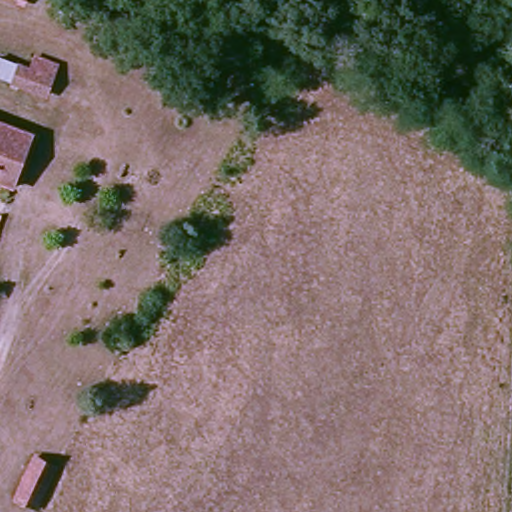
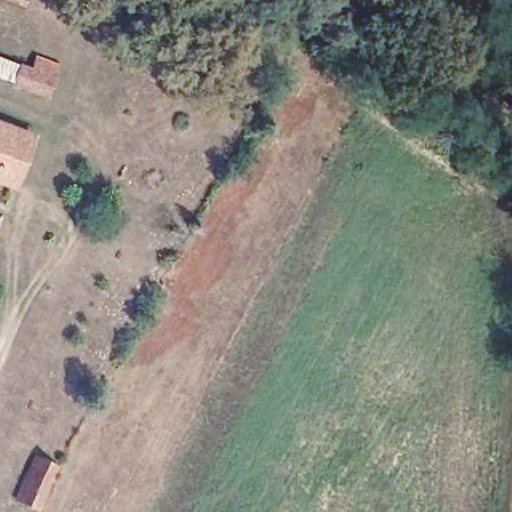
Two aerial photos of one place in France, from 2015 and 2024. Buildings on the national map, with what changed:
unchanged [(0,79),(0,49),(41,60),(31,88),(0,79)]
unchanged [(0,183),(0,126),(31,135),(15,189),(0,183)]
unchanged [(58,471),(39,507),(16,494),(36,458),(58,471)]

